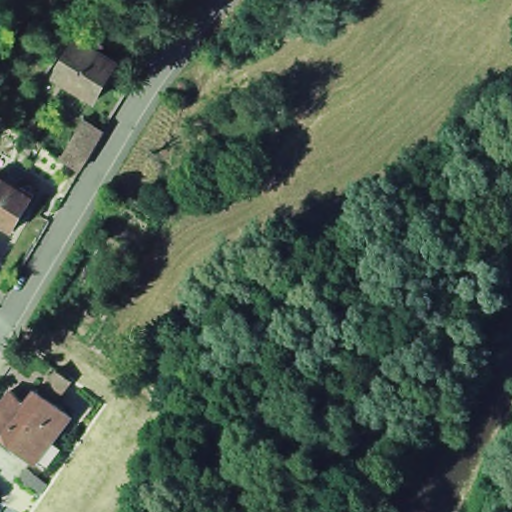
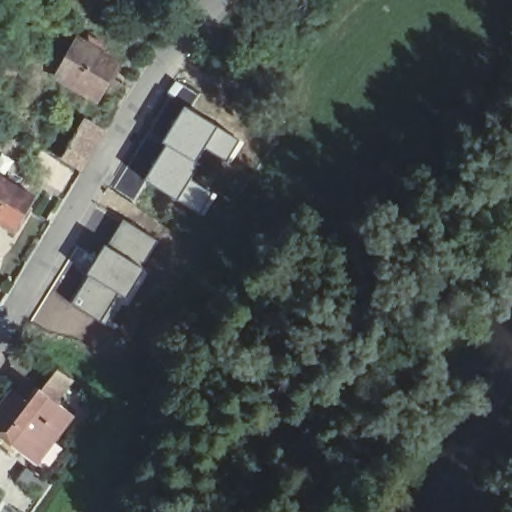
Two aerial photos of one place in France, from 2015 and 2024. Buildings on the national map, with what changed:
unchanged [(91,37),(107,46),(103,53),(120,63),(99,100),(60,78),(80,40),(88,44),(91,37)]
new [(228,166),(203,150),(198,164),(164,144),(161,142),(185,103),(166,91),(175,79),(197,93),(189,107),(217,123),(245,141),(228,166)]
unchanged [(85,119),(105,132),(82,170),(67,161),(63,158),(85,119)]
new [(203,217),(175,201),(141,181),(164,144),(198,164),(191,176),(218,192),(203,217)]
unchanged [(0,228),(0,183),(1,180),(8,184),(13,177),(28,185),(22,193),(37,203),(15,238),(0,228)]
new [(94,259),(122,218),(157,240),(140,266),(144,269),(124,299),(117,295),(100,321),(70,302),(94,259)]
unchanged [(19,443),(15,440),(0,429),(0,400),(12,384),(29,396),(38,382),(43,385),(59,361),(70,370),(56,393),(55,395),(73,407),(54,433),(64,440),(47,464),(36,456),(19,443)]
unchanged [(40,488),(16,471),(25,459),(48,476),(40,488)]

